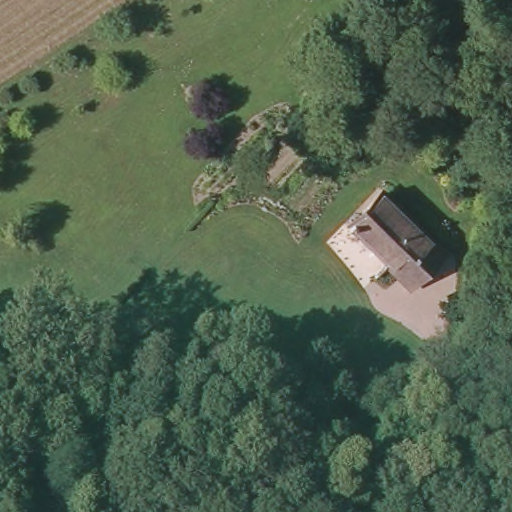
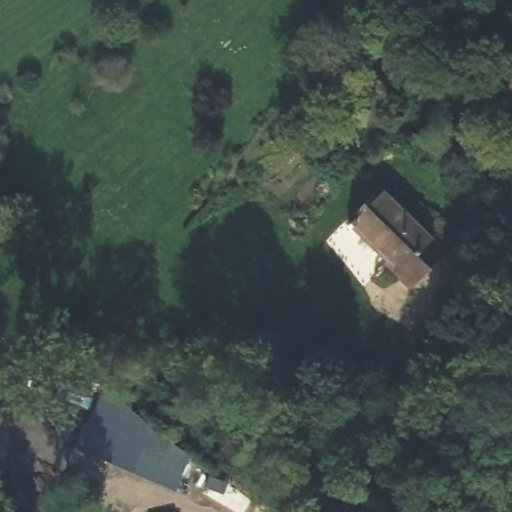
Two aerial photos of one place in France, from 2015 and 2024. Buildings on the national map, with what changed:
unchanged [(381,195),(443,253),(407,287),(383,265),(384,260),(349,226),(381,195)]
new [(105,387),(127,396),(124,404),(190,455),(176,490),(75,446),(105,387)]

